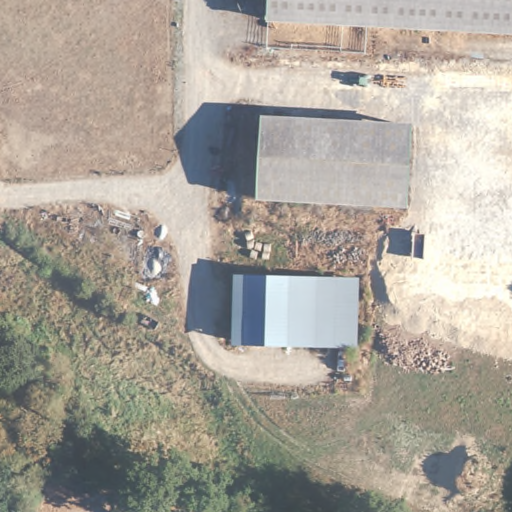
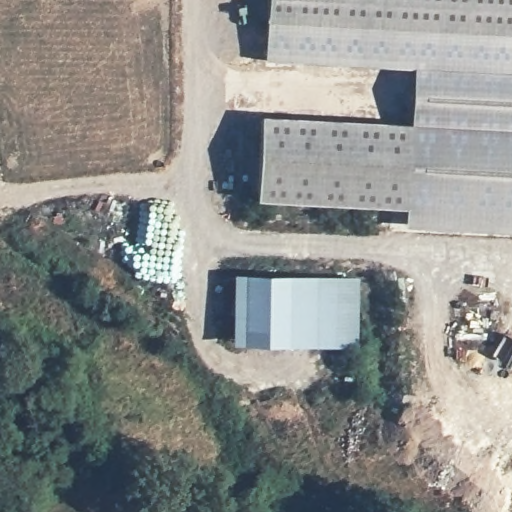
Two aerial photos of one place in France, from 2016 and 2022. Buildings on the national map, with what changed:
unchanged [(268,0),(512,0),(512,33),(266,19),(268,0)]
new [(402,206),(407,207),(412,128),(408,128),(412,70),(264,61),(266,19),(512,33),(512,234),(402,228),(402,206)]
unchanged [(407,207),(256,199),(261,119),(412,128),(407,207)]
unchanged [(358,275),(358,343),(318,343),(318,348),(230,348),(230,275),(358,275)]

